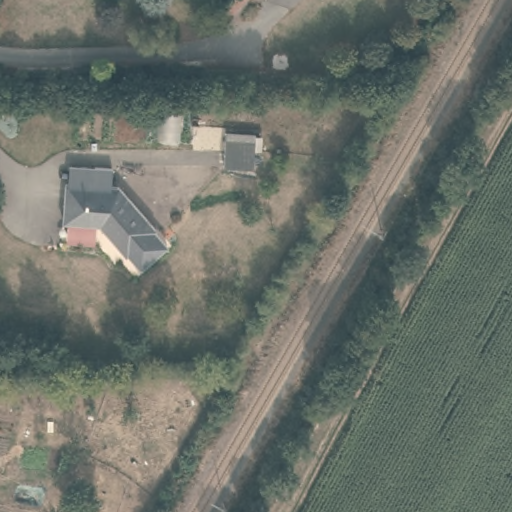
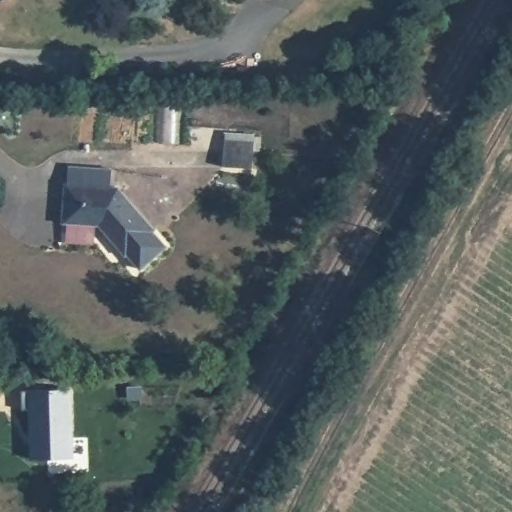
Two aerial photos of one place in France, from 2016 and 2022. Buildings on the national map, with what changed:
unchanged [(255,167),(226,165),(228,136),(255,138),(255,167)]
unchanged [(149,229),(161,244),(137,265),(124,250),(122,252),(98,224),(59,222),(62,179),(115,184),(150,228),(149,229)]
new [(29,409),(21,409),(22,389),(74,387),(75,459),(30,459),(29,409)]

